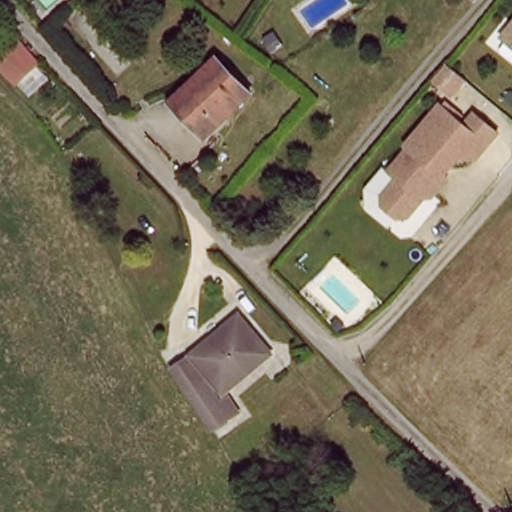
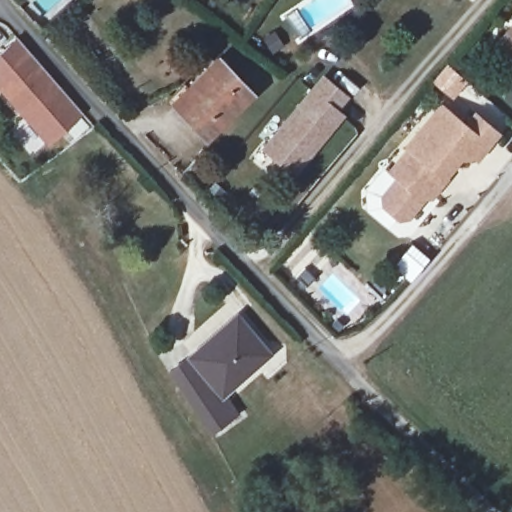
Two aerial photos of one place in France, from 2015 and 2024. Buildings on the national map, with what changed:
unchanged [(512,27),(512,43),(504,37),(512,27)]
new [(16,38),(83,115),(47,145),(0,91),(0,52),(16,38)]
demolished [(20,101),(0,77),(0,76),(25,53),(47,77),(20,101)]
unchanged [(255,96),(207,137),(172,97),(219,54),(255,96)]
new [(323,74),(349,97),(338,110),(345,115),(294,177),(260,148),(323,74)]
unchanged [(463,125),(470,116),(493,135),(471,162),(460,152),(438,179),(434,176),(420,192),(423,195),(406,216),(396,217),(382,205),(380,195),(395,177),(387,170),(405,147),(402,145),(436,102),(463,125)]
unchanged [(270,350),(219,392),(188,355),(239,311),(270,350)]
unchanged [(202,383),(228,424),(210,439),(185,392),(202,383)]

